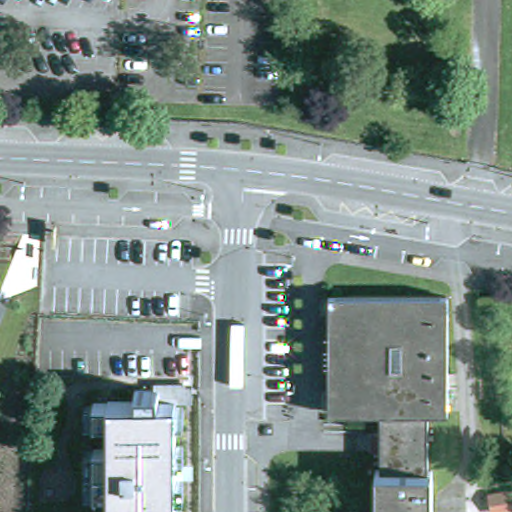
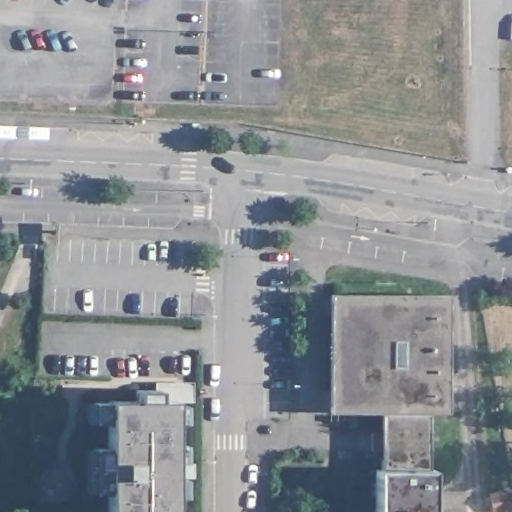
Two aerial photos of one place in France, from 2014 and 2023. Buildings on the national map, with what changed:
unchanged [(336,402),(335,293),(354,293),(354,408),(336,408),(336,402)]
unchanged [(452,294),(451,410),(433,410),(434,470),(439,470),(439,512),(379,512),(379,500),(381,469),(386,469),(385,410),(354,408),(354,293),(452,294)]
unchanged [(110,446),(111,407),(136,407),(136,396),(185,398),(185,407),(177,407),(177,470),(188,470),(188,483),(178,483),(177,512),(111,512),(110,446)]

